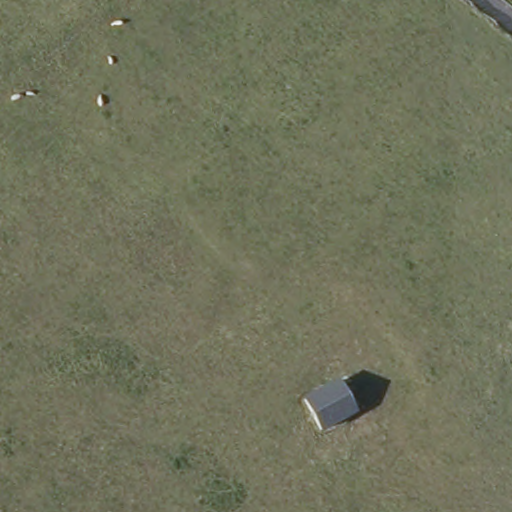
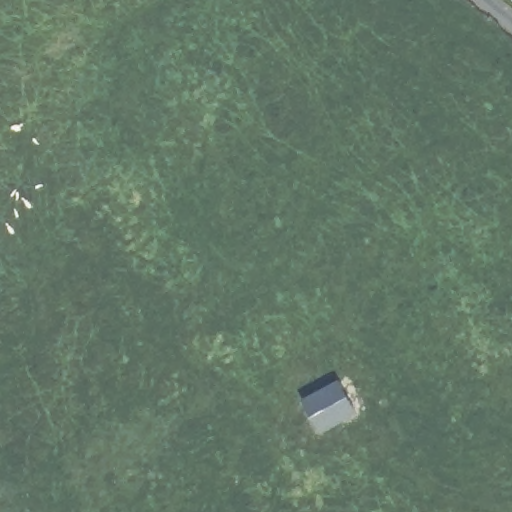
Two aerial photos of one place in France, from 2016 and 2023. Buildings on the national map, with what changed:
unchanged [(352,409),(318,429),(301,400),(335,378),(352,409)]

